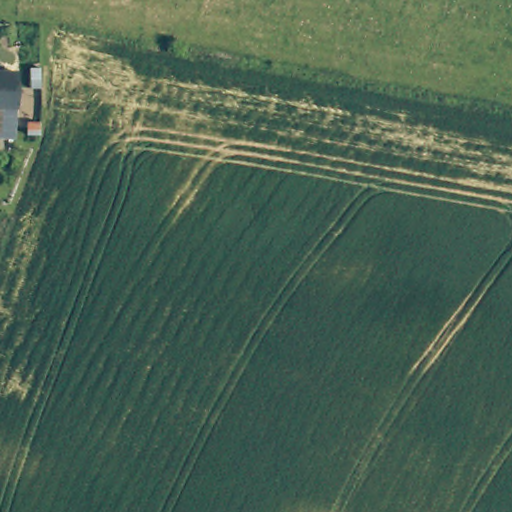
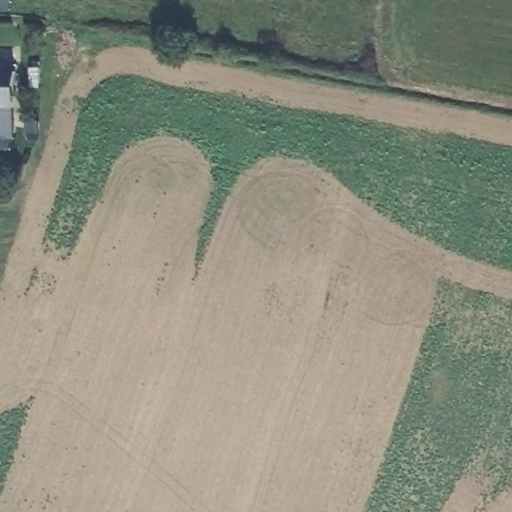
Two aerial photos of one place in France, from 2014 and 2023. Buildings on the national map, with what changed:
unchanged [(18,136),(0,136),(0,71),(18,72),(18,136)]

